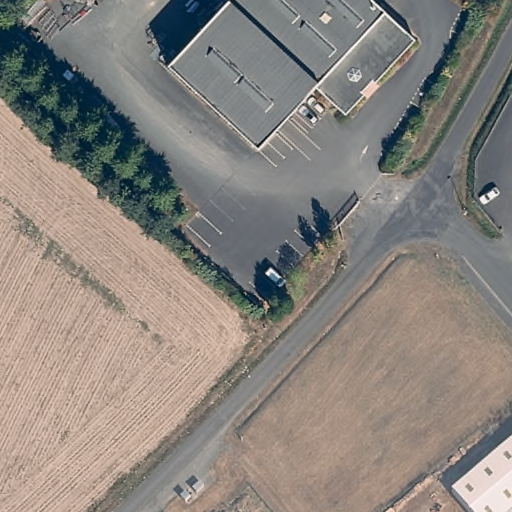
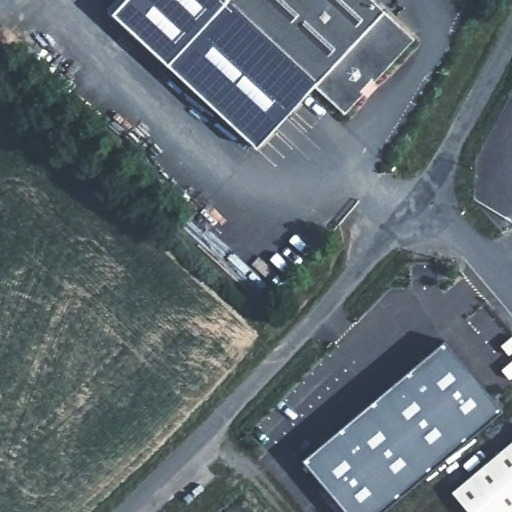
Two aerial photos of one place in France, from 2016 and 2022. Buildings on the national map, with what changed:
unchanged [(370,0),(415,41),(344,116),(316,90),(286,121),(195,36),(228,0),(370,0)]
unchanged [(258,150),(167,66),(195,36),(286,121),(258,150)]
new [(448,342),(506,409),(389,512),(356,512),(311,459),(448,342)]
unchanged [(512,440),(512,512),(469,512),(452,491),(512,440)]

